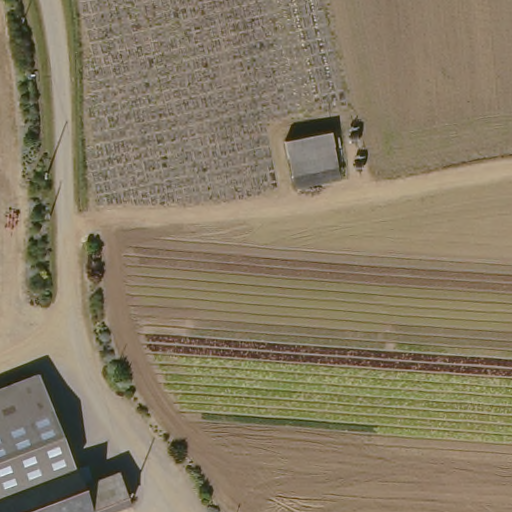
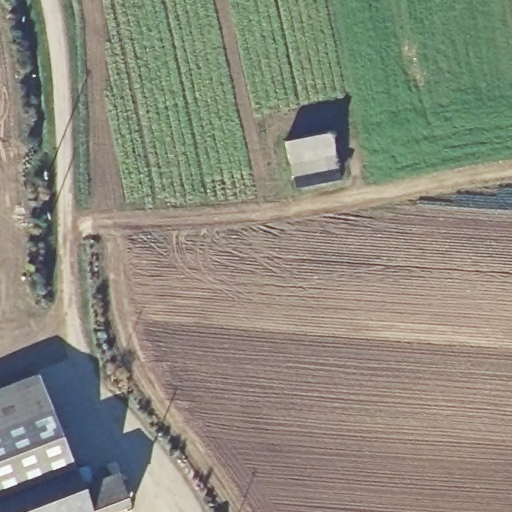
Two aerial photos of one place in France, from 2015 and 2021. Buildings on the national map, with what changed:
unchanged [(300,186),(290,140),(338,130),(347,175),(300,186)]
unchanged [(0,512),(0,388),(42,370),(86,481),(121,473),(134,506),(118,512),(0,512)]

